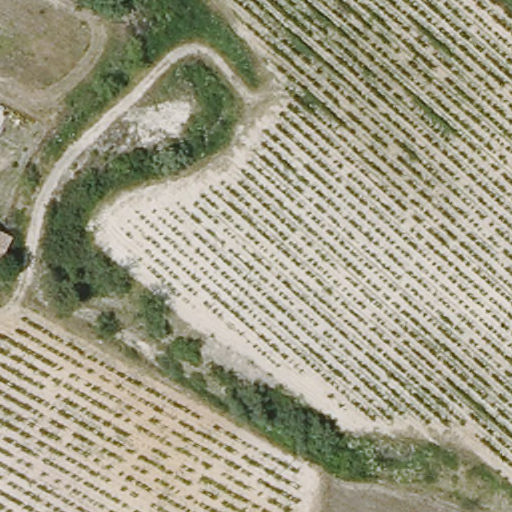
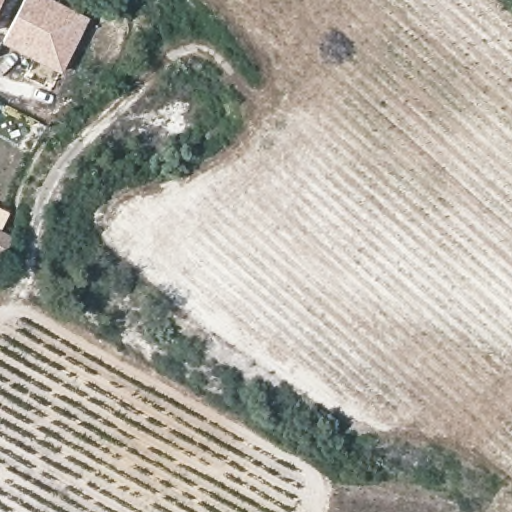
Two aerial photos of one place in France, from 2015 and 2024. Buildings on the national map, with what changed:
new [(3,44),(24,0),(54,0),(90,19),(61,75),(3,44)]
unchanged [(3,261),(0,260),(0,230),(13,235),(3,261)]

